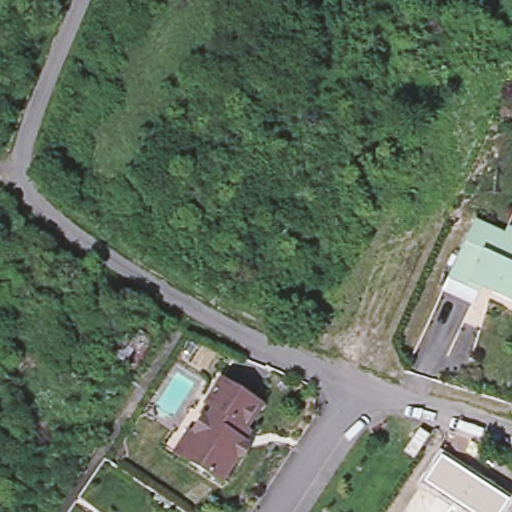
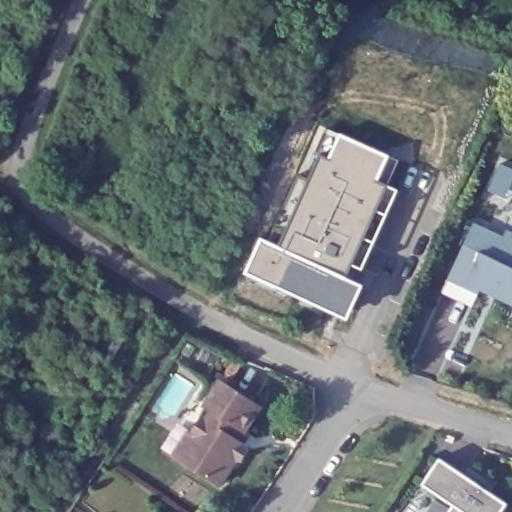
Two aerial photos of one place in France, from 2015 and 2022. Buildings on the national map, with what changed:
new [(246,272),(261,238),(269,242),(299,175),(309,180),(320,156),(315,152),(327,126),(341,133),(389,155),(399,160),(387,185),(399,190),(363,269),(352,264),(347,277),(364,285),(349,319),(246,272)]
new [(512,170),(512,185),(506,200),(489,191),(501,165),(512,170)]
unchanged [(474,224),(503,236),(506,230),(512,232),(512,305),(491,295),(479,290),(477,295),(472,306),(442,292),(448,281),(474,224)]
unchanged [(259,406),(237,438),(244,443),(245,448),(240,456),(234,458),(218,482),(185,461),(200,437),(191,432),(201,415),(207,419),(213,410),(204,405),(220,379),(259,406)]
unchanged [(449,509),(452,505),(421,485),(438,458),(506,503),(500,512),(425,512),(434,499),(449,509)]

